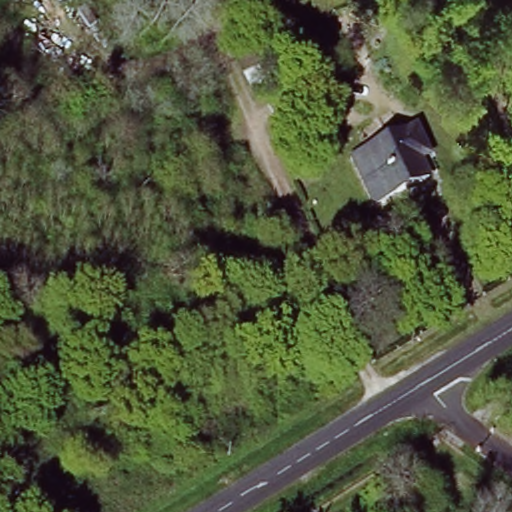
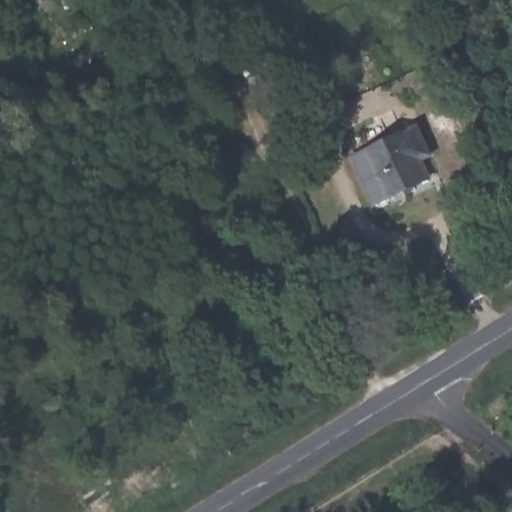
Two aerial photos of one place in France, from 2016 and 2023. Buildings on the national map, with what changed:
unchanged [(411,120),(426,150),(412,157),(422,176),(381,197),(357,148),(411,120)]

